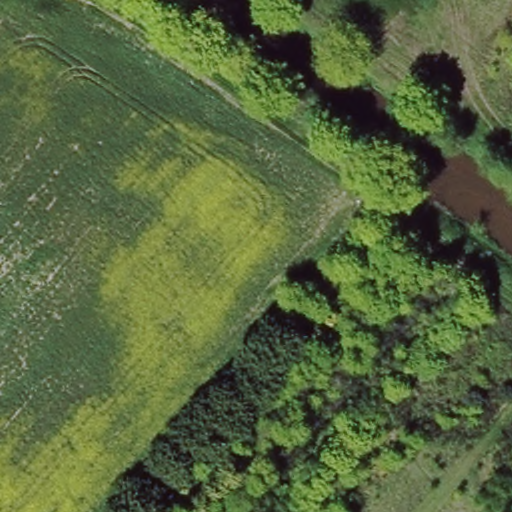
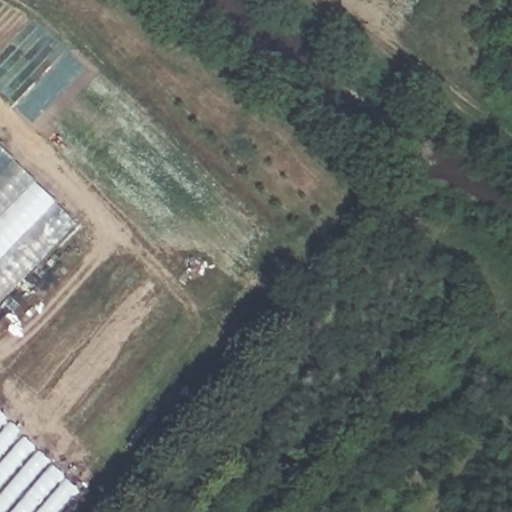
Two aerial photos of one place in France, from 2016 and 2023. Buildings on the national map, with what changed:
new [(0,304),(0,147),(77,225),(0,304)]
new [(0,512),(0,410),(77,490),(59,512),(0,512)]

